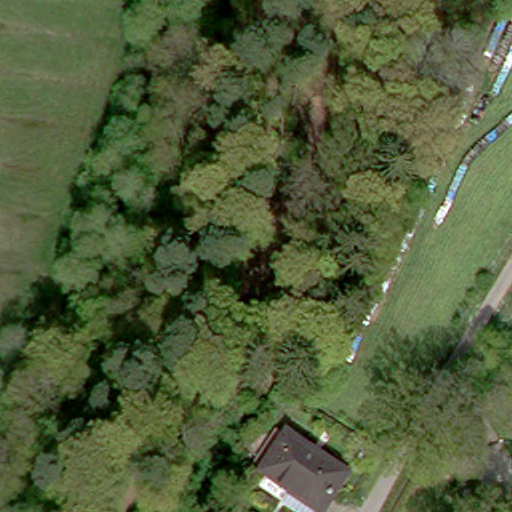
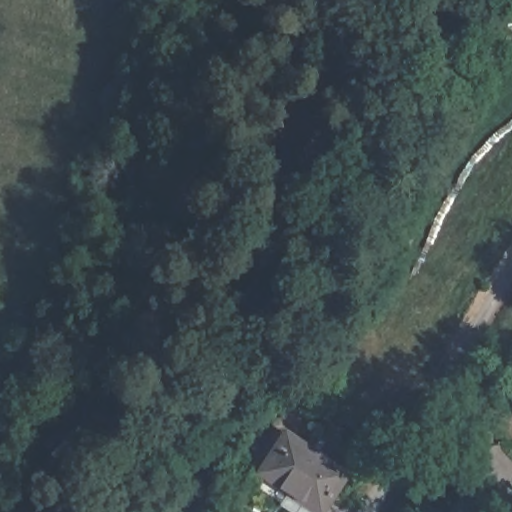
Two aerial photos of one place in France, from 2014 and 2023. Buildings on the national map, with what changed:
unchanged [(295,498),(264,478),(291,440),(352,480),(332,512),(288,512),(287,511),(295,498)]

